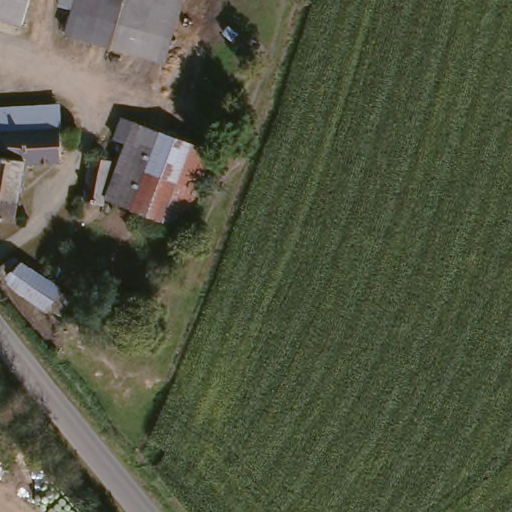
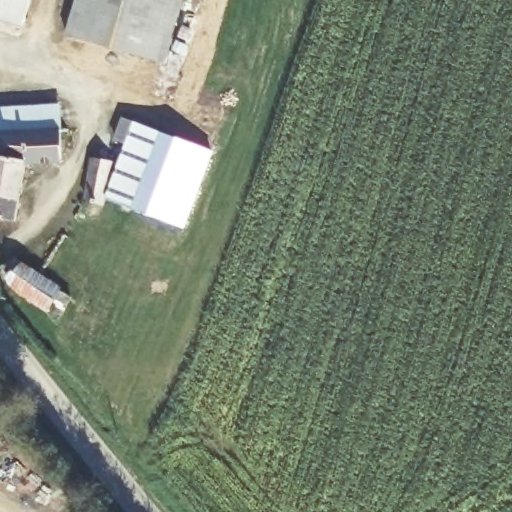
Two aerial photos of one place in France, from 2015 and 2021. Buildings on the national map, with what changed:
unchanged [(0,16),(0,0),(30,0),(23,23),(0,16)]
unchanged [(86,7),(72,3),(72,0),(194,0),(177,60),(77,31),(86,7)]
unchanged [(0,140),(3,126),(6,126),(2,104),(63,101),(65,125),(75,125),(77,151),(67,153),(67,157),(31,159),(0,157),(0,140)]
unchanged [(143,146),(131,140),(140,115),(229,149),(197,229),(123,200),(143,146)]
unchanged [(0,157),(31,159),(21,215),(0,212),(0,157)]
unchanged [(115,205),(111,207),(107,209),(105,208),(103,206),(102,202),(99,201),(107,161),(126,166),(115,205)]
unchanged [(73,314),(62,308),(57,314),(30,293),(11,266),(26,257),(31,263),(34,261),(48,273),(62,282),(72,288),(71,291),(82,297),(73,314)]

